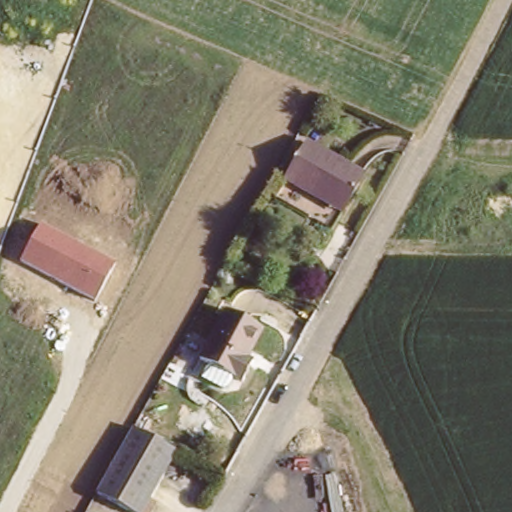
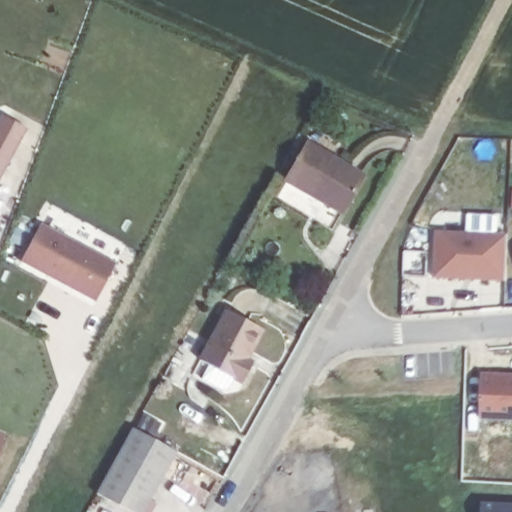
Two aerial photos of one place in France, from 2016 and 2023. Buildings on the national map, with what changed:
new [(28,130),(0,182),(0,123),(3,116),(28,130)]
unchanged [(362,180),(345,211),(317,193),(312,200),(285,183),(306,146),(362,180)]
unchanged [(41,224),(115,264),(95,302),(20,263),(41,224)]
new [(508,235),(506,282),(433,278),(436,232),(508,235)]
unchanged [(264,326),(248,356),(253,359),(241,381),(200,358),(230,308),(264,326)]
new [(481,372),(512,373),(512,421),(480,419),(481,372)]
unchanged [(147,496),(152,499),(145,512),(133,512),(97,492),(132,429),(172,451),(147,496)]
new [(0,452),(0,432),(6,434),(0,452)]
new [(512,505),(512,512),(482,512),(482,503),(512,505)]

